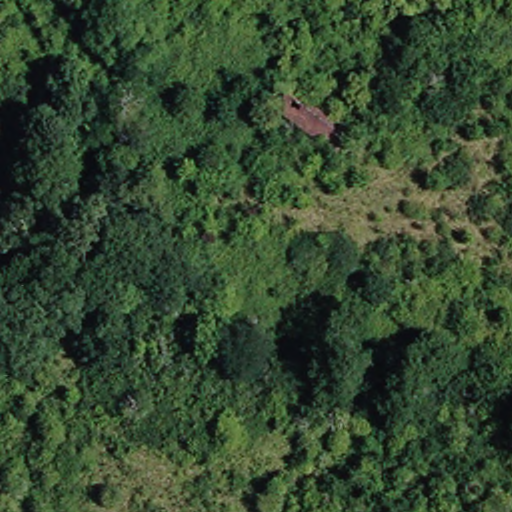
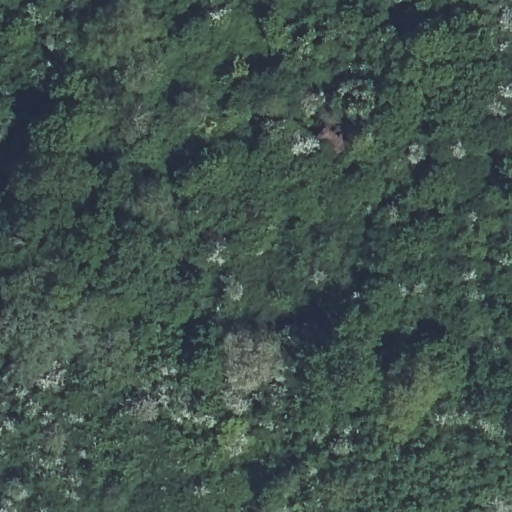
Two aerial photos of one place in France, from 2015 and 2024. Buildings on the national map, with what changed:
unchanged [(292,91),(365,134),(348,164),(277,120),(292,91)]

